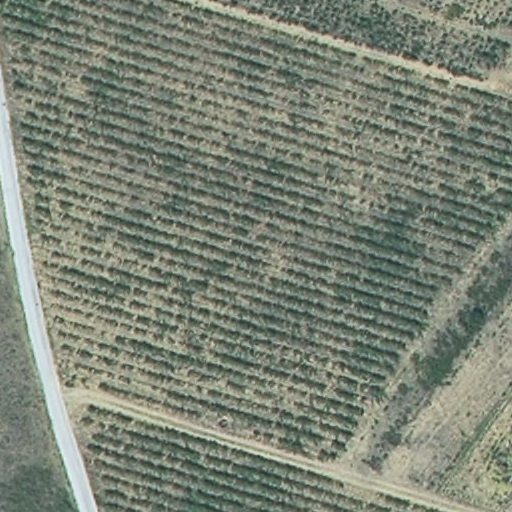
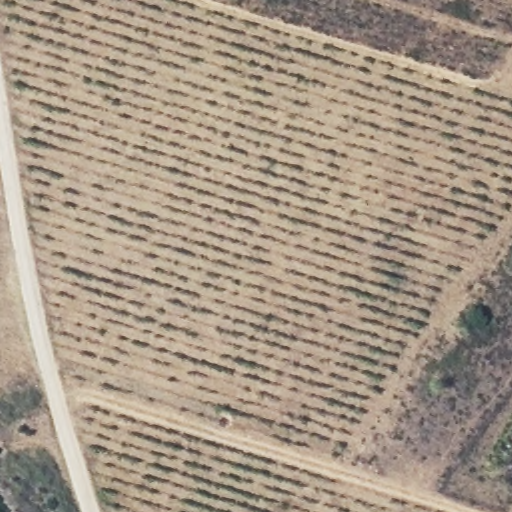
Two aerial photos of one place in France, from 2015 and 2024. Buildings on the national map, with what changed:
[]

